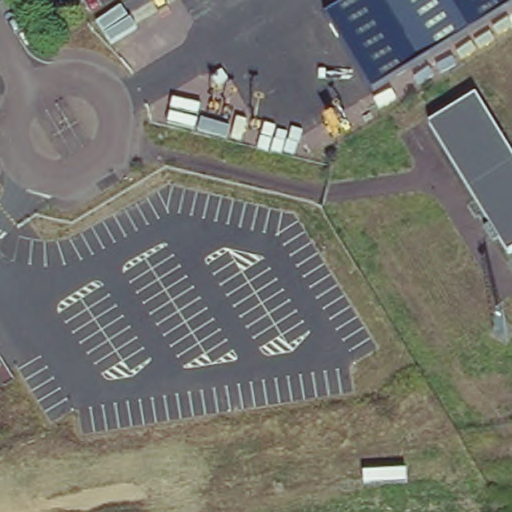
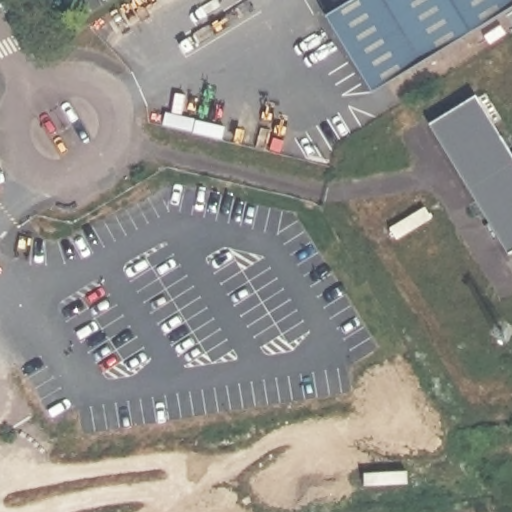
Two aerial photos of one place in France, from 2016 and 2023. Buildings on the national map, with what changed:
unchanged [(348,0),(512,0),(512,6),(370,92),(323,15),(348,0)]
unchanged [(482,102),(512,153),(512,260),(510,261),(432,130),(482,102)]

